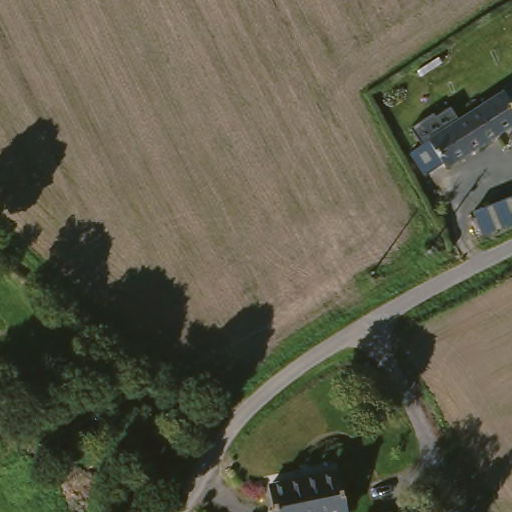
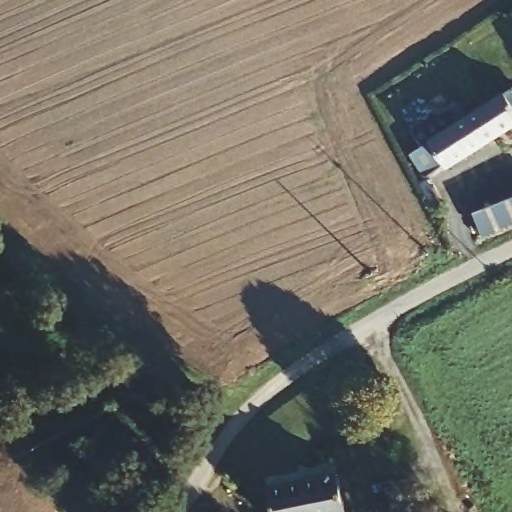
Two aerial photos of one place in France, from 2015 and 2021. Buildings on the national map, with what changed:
unchanged [(436,130),(508,84),(512,89),(512,124),(438,172),(436,174),(421,152),(427,148),(440,139),(436,130)]
unchanged [(512,197),(512,221),(488,232),(477,213),(512,197)]
unchanged [(345,512),(275,512),(270,490),(336,476),(345,512)]

